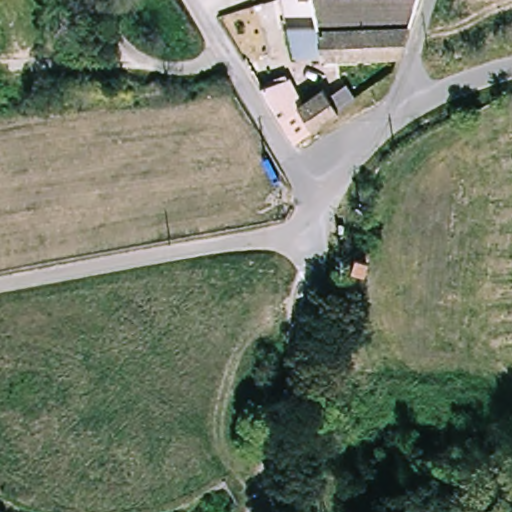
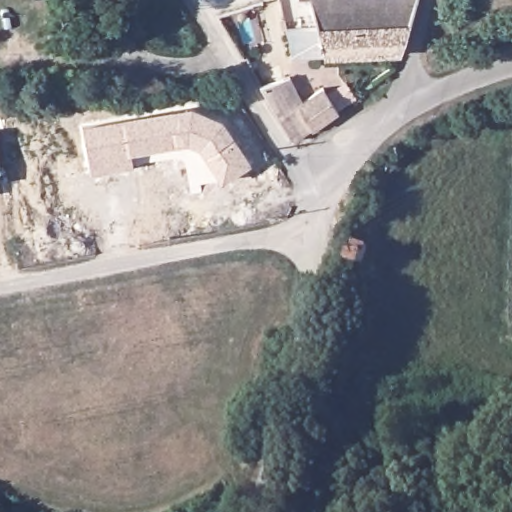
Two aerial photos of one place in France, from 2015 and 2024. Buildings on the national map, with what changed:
unchanged [(410,17),(407,27),(308,32),(303,4),(291,4),(291,0),(321,0),(321,4),(341,4),(341,0),(357,0),(357,2),(387,0),(415,0),(410,17)]
unchanged [(407,27),(396,60),(286,60),(278,33),(308,32),(407,27)]
unchanged [(296,139),(263,90),(288,83),(301,101),(326,88),(343,111),(296,139)]
new [(191,105),(223,119),(251,163),(220,181),(198,148),(188,142),(131,154),(133,164),(90,174),(81,125),(191,105)]

